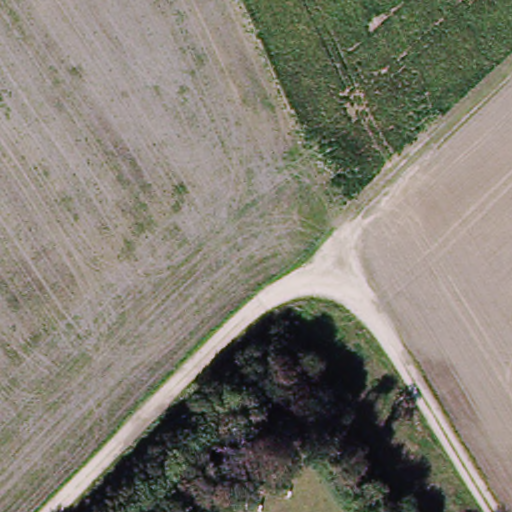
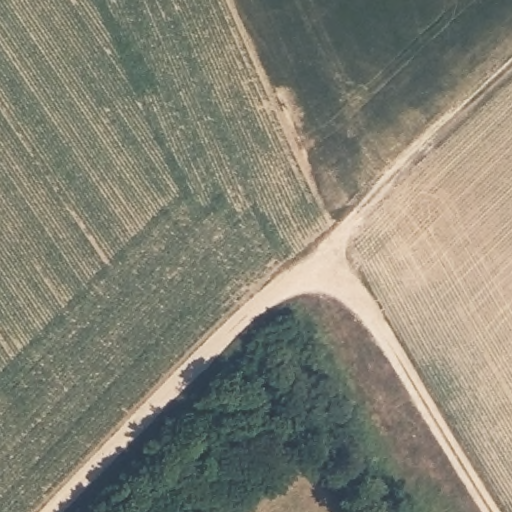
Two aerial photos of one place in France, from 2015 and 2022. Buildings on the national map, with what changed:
[]

